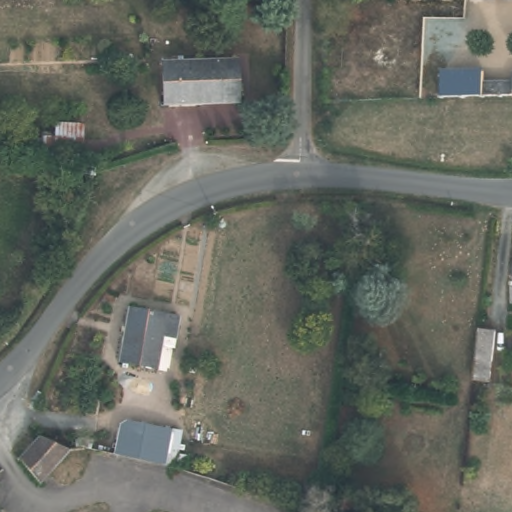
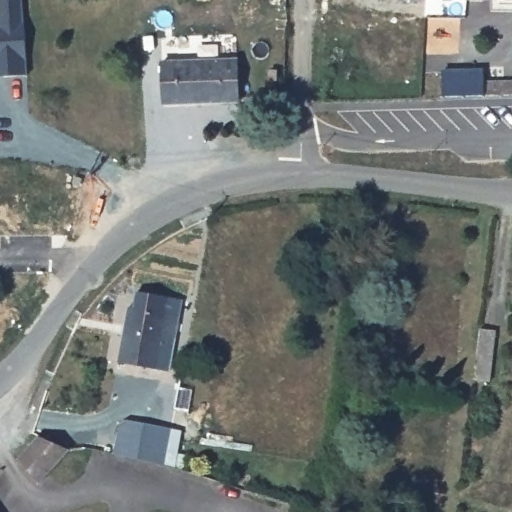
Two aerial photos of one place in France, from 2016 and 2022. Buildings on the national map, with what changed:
new [(28,75),(0,78),(0,0),(23,0),(28,75)]
unchanged [(237,104),(167,103),(167,61),(237,61),(237,104)]
unchanged [(442,73),(480,71),(480,81),(512,80),(512,96),(442,98),(442,73)]
unchanged [(512,283),(512,297),(510,296),(512,283)]
unchanged [(131,301),(177,313),(170,343),(159,340),(154,363),(118,355),(131,301)]
unchanged [(496,320),(490,376),(472,374),(478,317),(496,320)]
unchanged [(170,460),(118,448),(125,421),(133,424),(135,416),(178,428),(170,460)]
unchanged [(21,458),(41,432),(67,448),(40,480),(21,458)]

